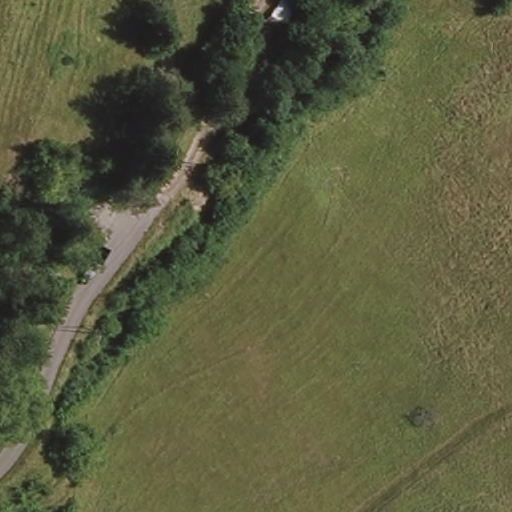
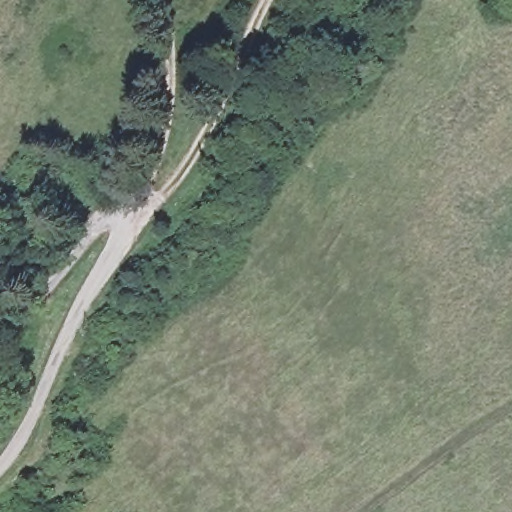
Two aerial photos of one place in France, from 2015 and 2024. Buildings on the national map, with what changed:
[]

